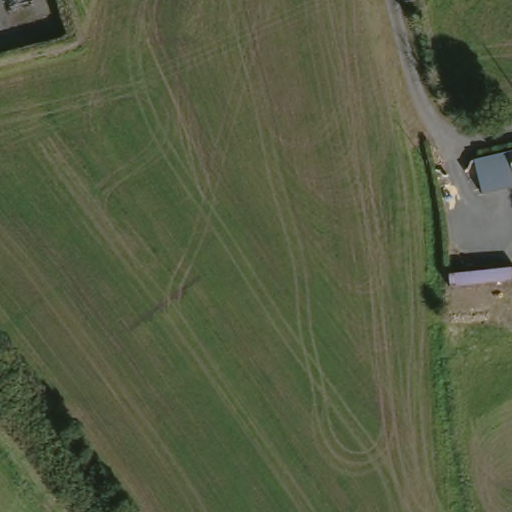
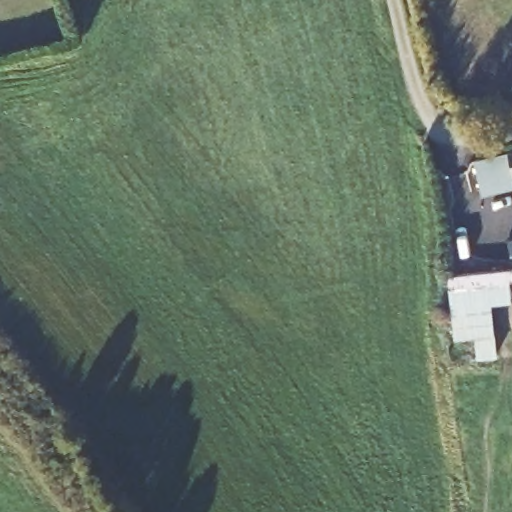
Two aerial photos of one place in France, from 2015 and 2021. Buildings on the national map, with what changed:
unchanged [(512,188),(483,194),(474,163),(512,154),(512,188)]
new [(512,268),(512,279),(508,279),(511,301),(492,304),(495,333),(455,336),(449,274),(512,268)]

